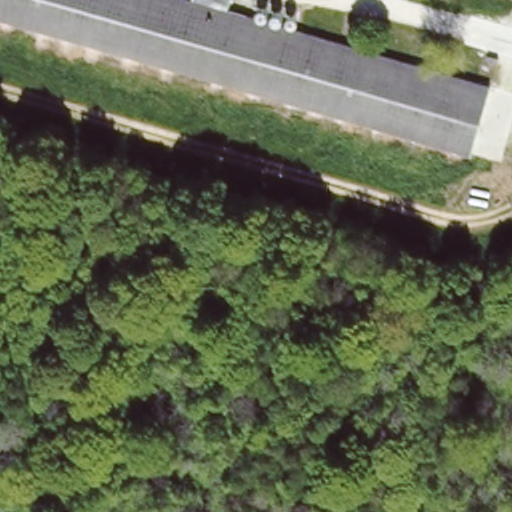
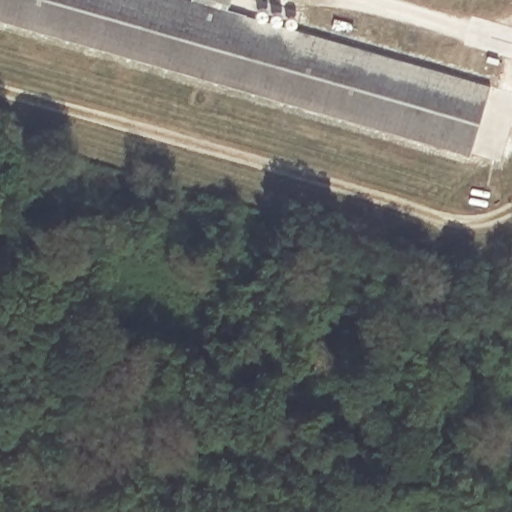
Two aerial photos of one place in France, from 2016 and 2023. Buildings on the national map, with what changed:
unchanged [(235,11),(490,87),(470,154),(0,19),(0,0),(236,0),(235,11)]

